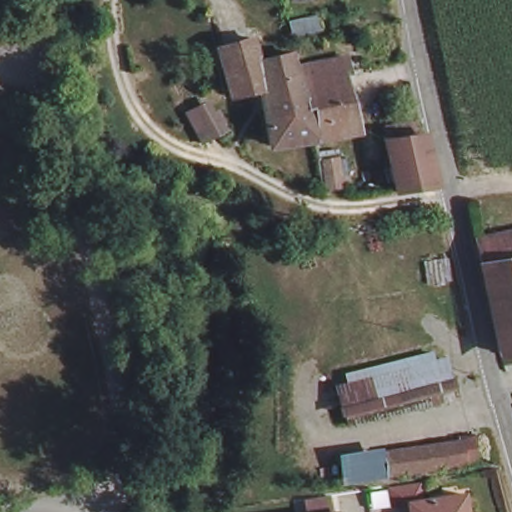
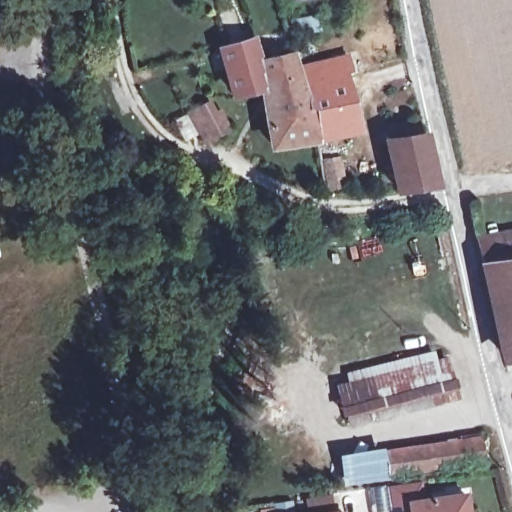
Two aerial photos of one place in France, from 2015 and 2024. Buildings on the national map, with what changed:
unchanged [(264,59),(297,51),(302,67),(350,57),(354,72),(347,75),(361,129),(319,137),(277,143),(269,91),(239,100),(225,47),(256,37),(264,59)]
unchanged [(223,129),(199,141),(187,116),(212,105),(223,129)]
unchanged [(386,137),(417,130),(420,144),(424,143),(435,195),(397,201),(385,150),(387,150),(386,137)]
unchanged [(342,186),(327,189),(322,160),(339,157),(342,186)]
unchanged [(488,269),(483,245),(512,240),(512,263),(488,269)]
unchanged [(507,357),(488,269),(512,263),(512,356),(507,357)]
unchanged [(460,399),(346,427),(335,383),(448,355),(460,399)]
unchanged [(485,463),(388,476),(385,450),(482,435),(485,463)]
unchanged [(385,480),(339,482),(336,448),(383,443),(382,447),(385,480)]
unchanged [(399,505),(397,488),(426,484),(429,500),(471,494),(474,512),(410,512),(409,503),(399,505)]
unchanged [(338,512),(331,512),(338,511),(338,512)]

